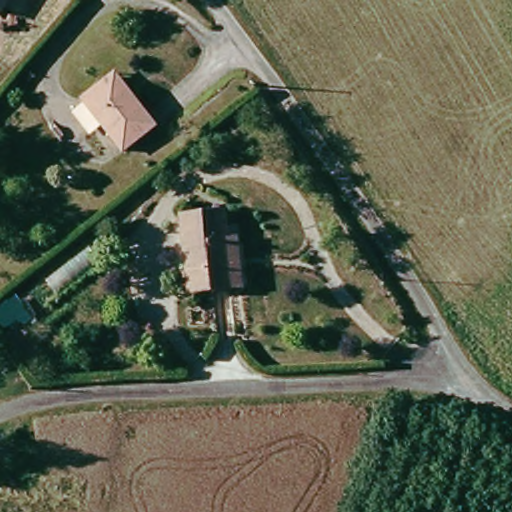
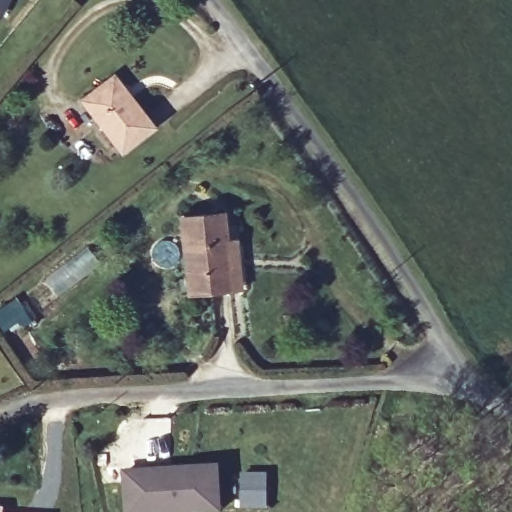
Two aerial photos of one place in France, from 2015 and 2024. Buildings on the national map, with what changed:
unchanged [(0,18),(0,0),(12,0),(1,19),(0,18)]
unchanged [(116,80),(155,131),(120,158),(81,107),(116,80)]
unchanged [(240,287),(229,289),(188,293),(180,220),(220,215),(223,241),(236,241),(240,287)]
unchanged [(20,312),(5,322),(0,314),(0,304),(10,297),(20,312)]
new [(221,463),(224,510),(199,512),(124,512),(121,470),(221,463)]
new [(5,505),(5,512),(0,512),(0,505),(5,505)]

